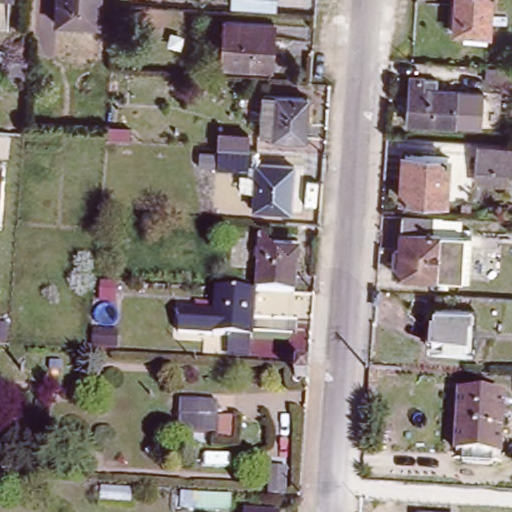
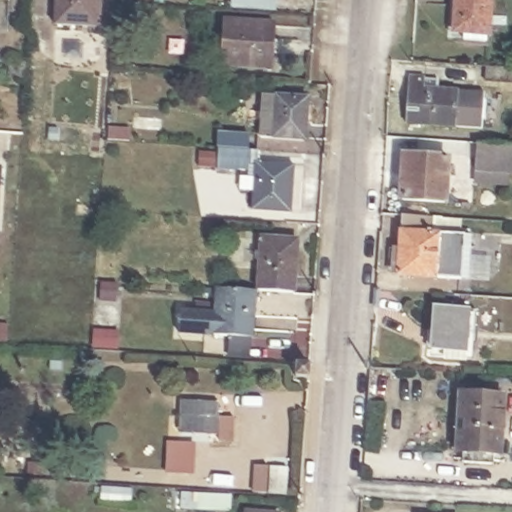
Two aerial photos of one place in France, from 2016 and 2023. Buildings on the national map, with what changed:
unchanged [(58,22),(60,0),(102,0),(100,25),(58,22)]
unchanged [(456,0),(490,0),(489,29),(454,28),(456,0)]
unchanged [(275,26),(272,71),(222,67),(226,21),(275,26)]
unchanged [(24,62),(22,79),(8,78),(9,62),(24,62)]
unchanged [(505,68),(512,69),(512,84),(484,81),(485,67),(505,68)]
unchanged [(457,94),(454,129),(409,125),(412,78),(426,79),(425,91),(457,94)]
unchanged [(307,100),(305,140),(261,137),(264,96),(307,100)]
unchanged [(290,213),(254,210),(256,179),(217,176),(218,149),(219,149),(220,133),(244,133),(245,151),(258,152),(257,165),(294,168),(290,213)]
unchanged [(474,185),(474,173),(475,147),(512,149),(512,175),(506,175),(504,186),(474,185)]
unchanged [(449,156),(445,200),(402,197),(406,152),(449,156)]
unchanged [(0,184),(0,167),(1,167),(0,184)]
unchanged [(436,216),(435,232),(467,235),(464,279),(402,275),(407,214),(436,216)]
unchanged [(298,243),(295,295),(257,292),(262,240),(298,243)]
unchanged [(256,291),(252,338),(179,332),(181,310),(216,313),(218,289),(256,291)]
unchanged [(472,308),(470,351),(439,349),(442,306),(472,308)]
unchanged [(311,368),(310,379),(297,377),(298,366),(311,368)]
unchanged [(505,395),(502,456),(495,455),(495,465),(463,463),(464,452),(458,452),(461,393),(505,395)]
unchanged [(220,399),(221,437),(177,435),(179,396),(220,399)]
unchanged [(287,469),(286,493),(271,492),(272,467),(287,469)]
unchanged [(279,512),(246,512),(247,509),(279,512)]

